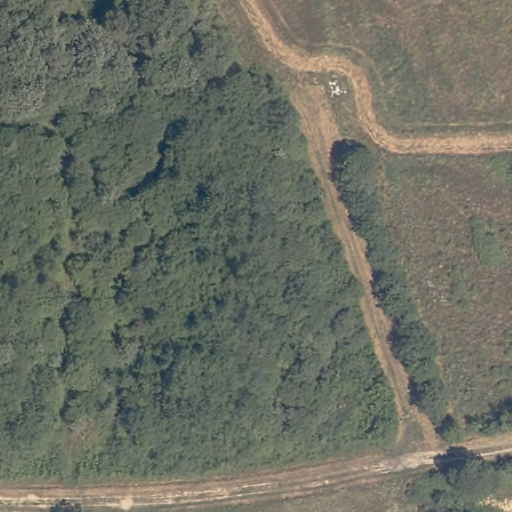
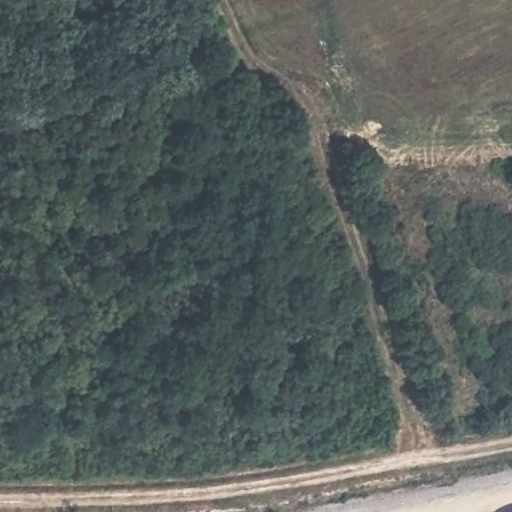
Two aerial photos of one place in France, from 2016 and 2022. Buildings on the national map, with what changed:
[]

